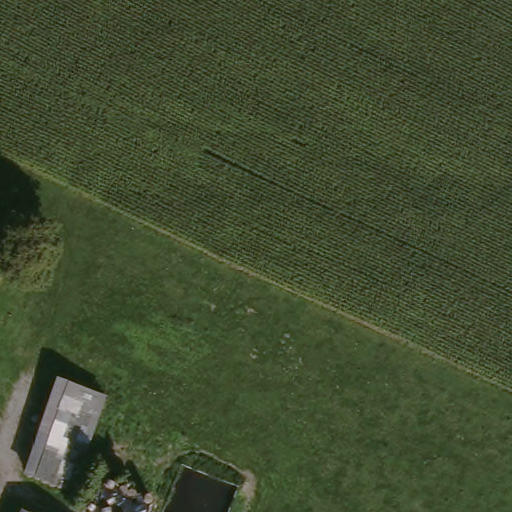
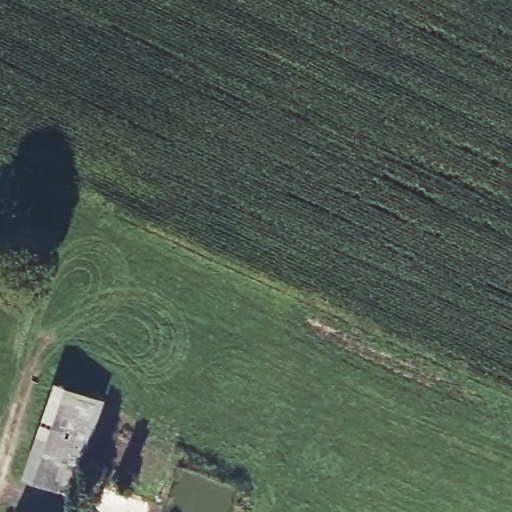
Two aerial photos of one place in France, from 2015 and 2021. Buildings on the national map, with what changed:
unchanged [(63,383),(99,396),(66,489),(31,476),(63,383)]

